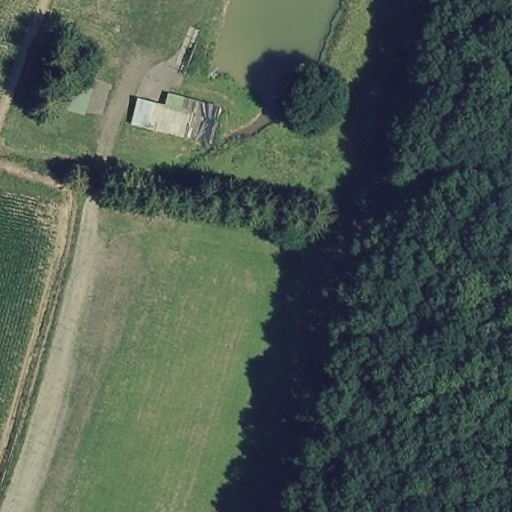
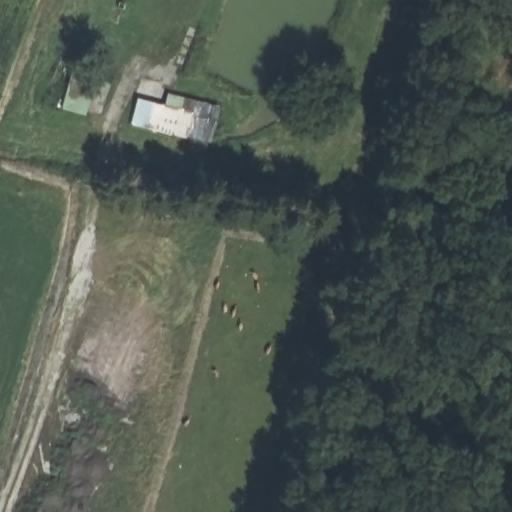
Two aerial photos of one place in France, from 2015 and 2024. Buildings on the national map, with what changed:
unchanged [(89,118),(64,113),(76,72),(98,78),(89,118)]
unchanged [(209,143),(127,124),(134,97),(164,103),(167,94),(219,106),(209,143)]

